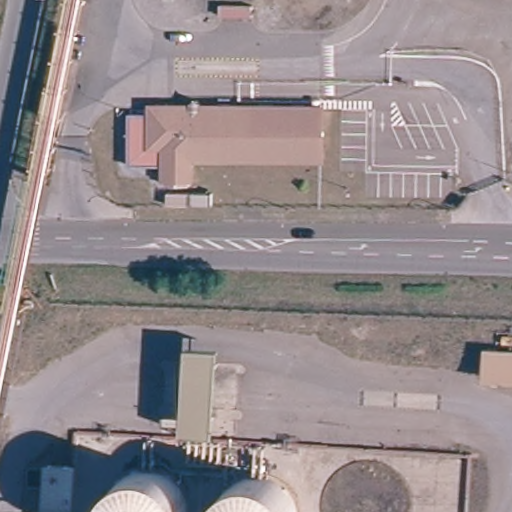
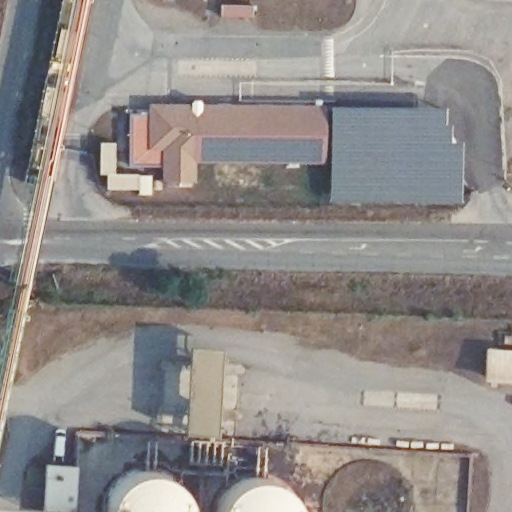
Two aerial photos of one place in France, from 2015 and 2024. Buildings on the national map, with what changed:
unchanged [(324,152),(194,159),(194,177),(192,178),(169,179),(169,160),(133,162),(130,116),(153,115),(160,110),(190,109),(190,101),(200,101),(200,108),(322,102),(324,152)]
new [(332,201),(332,106),(448,107),(447,122),(452,122),(452,141),(463,141),(464,202),(332,201)]
unchanged [(485,344),(512,346),(512,379),(483,378),(485,344)]
new [(185,352),(215,354),(212,436),(182,435),(185,352)]
unchanged [(79,512),(46,512),(46,456),(79,462),(79,512)]

